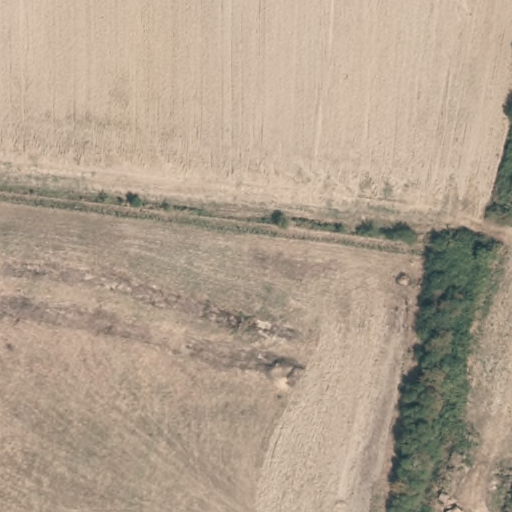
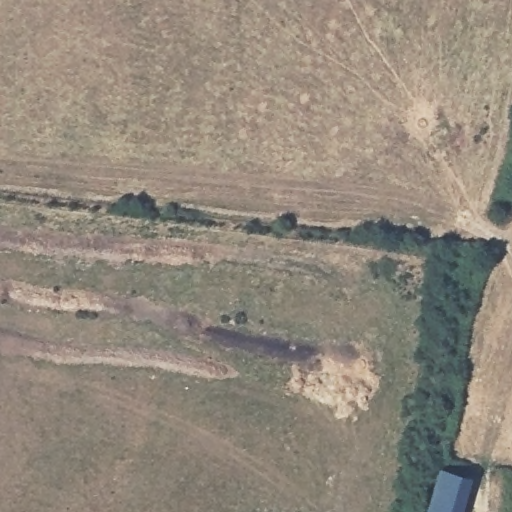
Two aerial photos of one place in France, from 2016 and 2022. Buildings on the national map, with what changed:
new [(439,469),(471,479),(462,512),(427,512),(439,469)]

